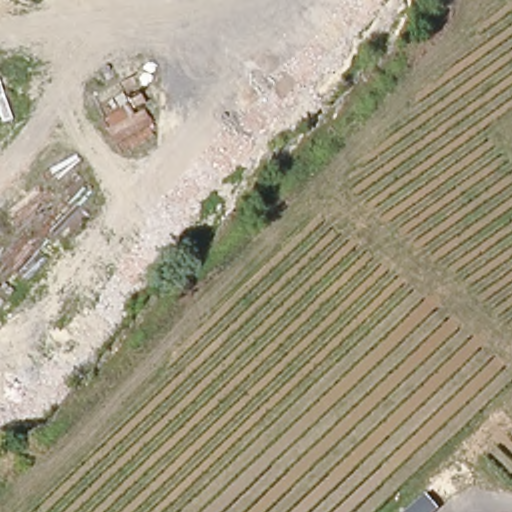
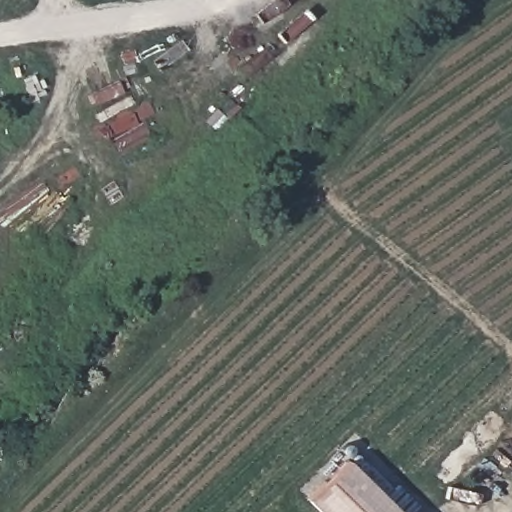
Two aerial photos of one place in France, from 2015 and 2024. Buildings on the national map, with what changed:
new [(347,458),(400,512),(321,512),(307,498),(347,458)]

